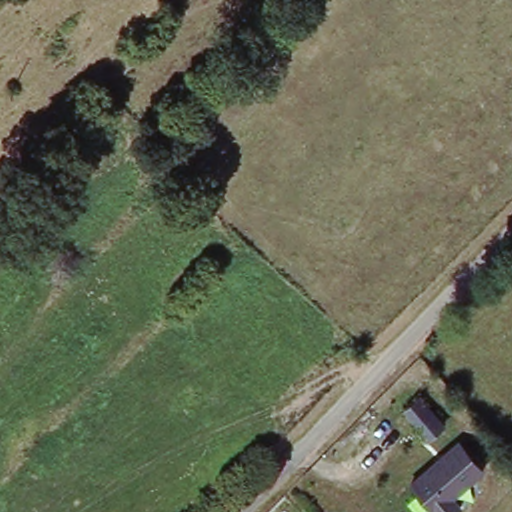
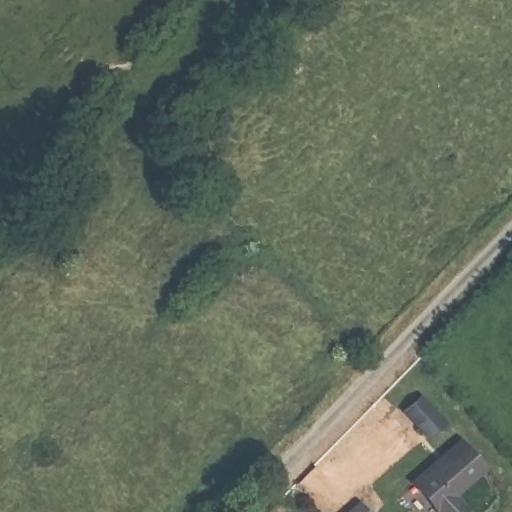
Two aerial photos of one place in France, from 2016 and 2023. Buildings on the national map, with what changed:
unchanged [(430,441),(402,409),(421,392),(448,419),(430,441)]
unchanged [(491,470),(463,494),(470,506),(463,512),(447,512),(420,481),(462,441),(491,470)]

